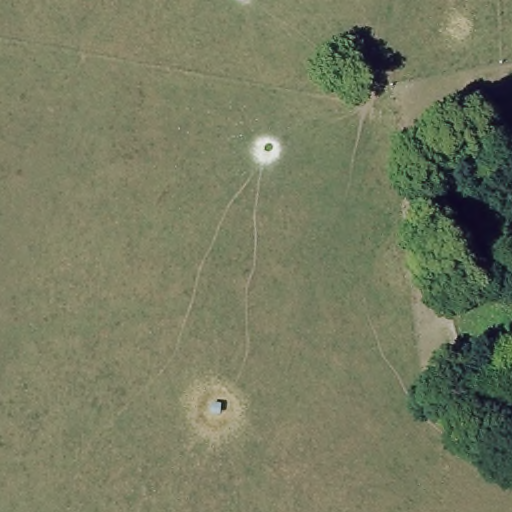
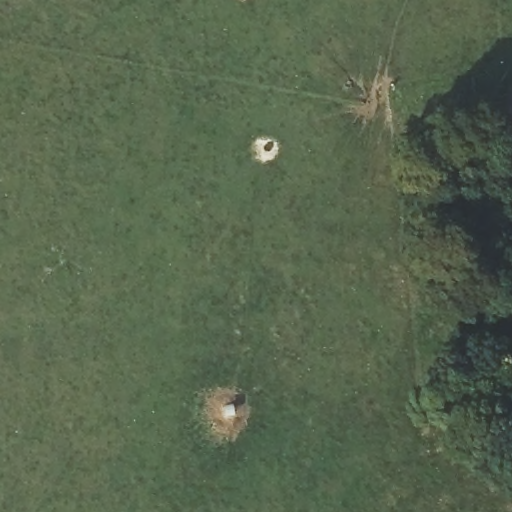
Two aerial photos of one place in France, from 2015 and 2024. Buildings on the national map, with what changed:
[]

